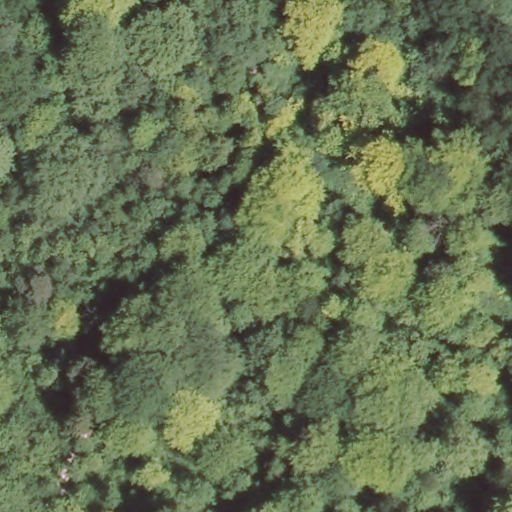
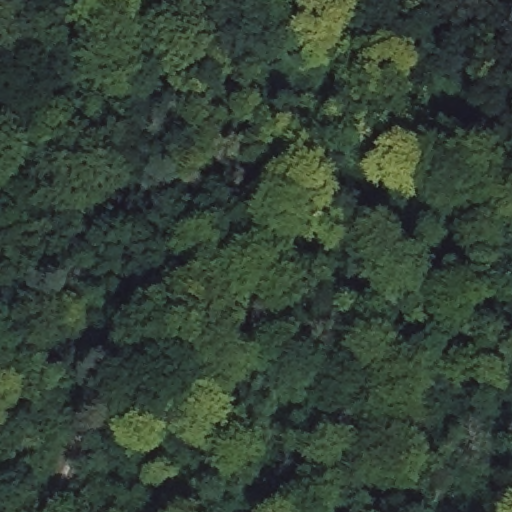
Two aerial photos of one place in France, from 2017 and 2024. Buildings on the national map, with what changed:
[]

